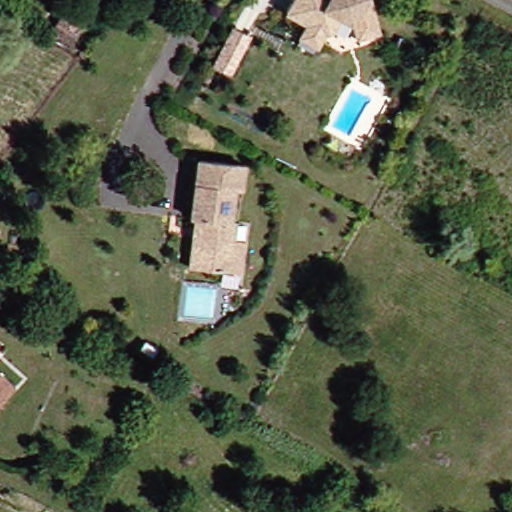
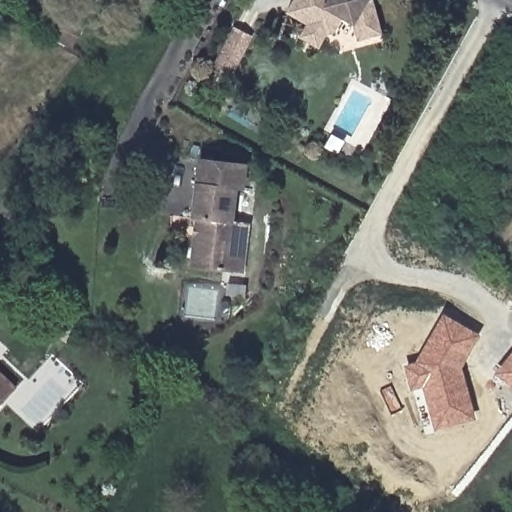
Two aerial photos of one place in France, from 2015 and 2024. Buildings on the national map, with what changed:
unchanged [(381,31),(357,37),(353,21),(341,15),(332,29),(325,30),(286,8),(291,0),(374,0),(381,31)]
unchanged [(213,53),(232,18),(248,27),(228,61),(213,53)]
unchanged [(193,270),(185,269),(192,220),(188,219),(193,184),(194,184),(197,162),(242,169),(239,190),(234,190),(229,224),(234,225),(231,242),(240,244),(236,276),(228,275),(218,273),(193,270)]
new [(462,368),(476,420),(435,431),(423,387),(411,391),(404,365),(415,362),(443,313),(480,335),(462,368)]
unchanged [(136,343),(149,350),(144,360),(131,352),(136,343)]
new [(512,352),(512,389),(494,373),(512,352)]
unchanged [(12,392),(0,405),(0,381),(12,392)]

